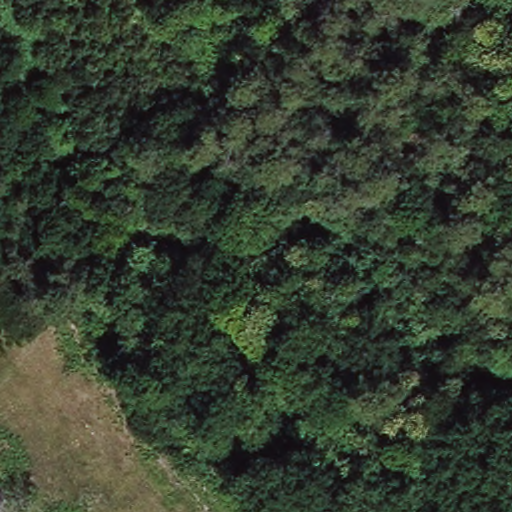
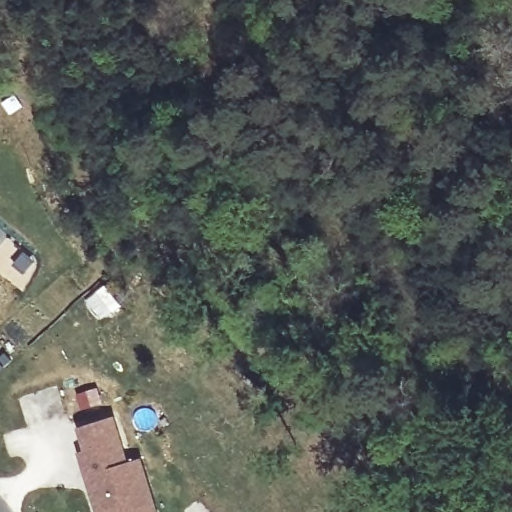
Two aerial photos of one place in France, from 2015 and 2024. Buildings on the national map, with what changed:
new [(3,363),(0,366),(0,359),(3,363)]
new [(57,386),(65,414),(27,426),(18,398),(57,386)]
new [(158,512),(100,512),(85,465),(82,452),(88,450),(81,427),(117,416),(131,462),(138,459),(138,460),(144,459),(160,511),(158,512)]

